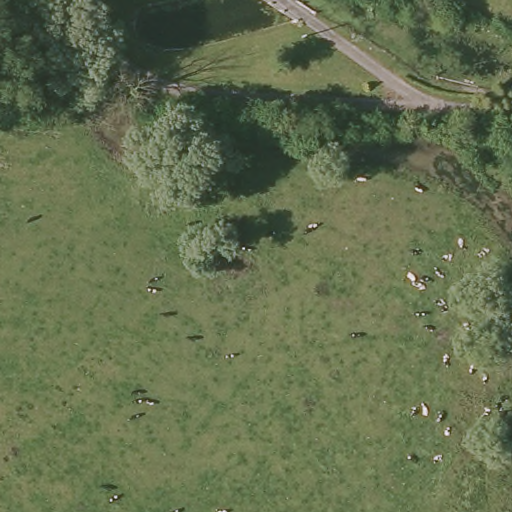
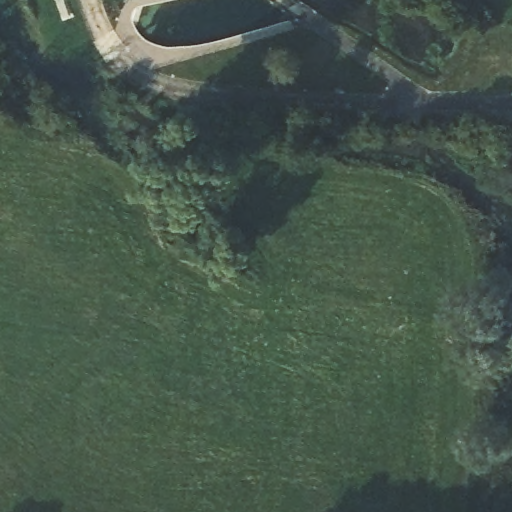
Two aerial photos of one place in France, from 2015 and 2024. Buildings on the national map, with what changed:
[]

